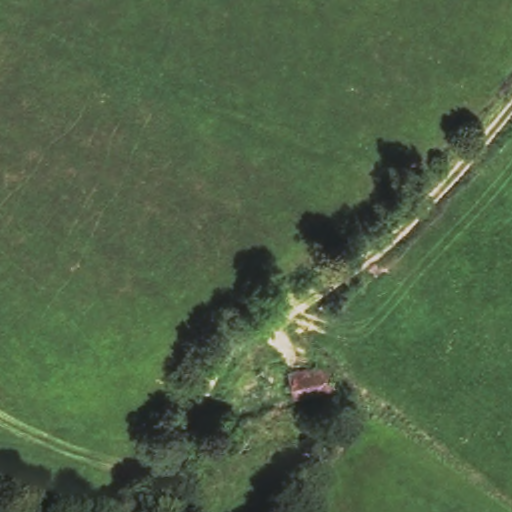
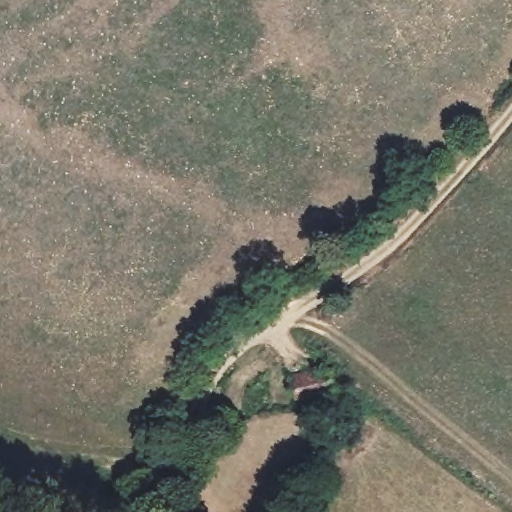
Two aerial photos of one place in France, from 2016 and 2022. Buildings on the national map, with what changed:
unchanged [(288,371),(337,366),(340,395),(312,397),(295,400),(288,371)]

